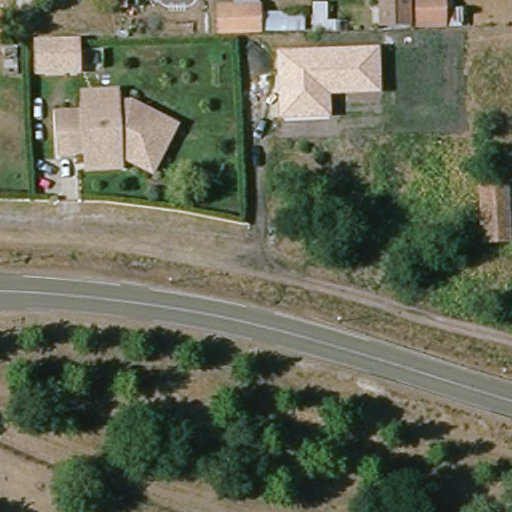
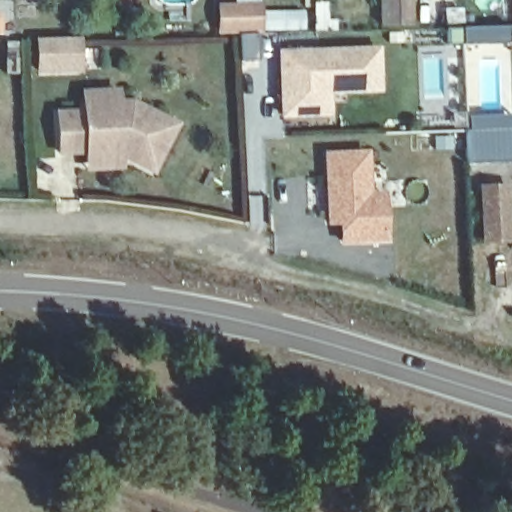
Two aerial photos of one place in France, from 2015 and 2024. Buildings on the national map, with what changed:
unchanged [(140,19),(113,20),(112,0),(140,0),(140,19)]
unchanged [(401,22),(376,22),(376,0),(402,0),(401,22)]
unchanged [(437,19),(410,19),(410,0),(437,0),(437,19)]
unchanged [(225,6),(258,5),(258,29),(226,30),(220,30),(220,6),(225,6)]
new [(461,26),(512,26),(512,43),(461,44),(461,26)]
unchanged [(70,76),(41,76),(40,45),(61,44),(80,44),(80,55),(81,75),(70,76)]
unchanged [(332,96),(331,117),(280,119),(276,51),(380,47),(382,94),(332,96)]
unchanged [(86,170),(85,153),(59,154),(56,114),(82,112),(81,93),(115,91),(115,103),(130,103),(174,125),(151,172),(119,156),(120,168),(86,170)]
new [(451,113),(465,113),(465,114),(512,114),(512,161),(467,163),(465,127),(451,128),(451,113)]
new [(369,149),(371,192),(385,192),(388,242),(341,244),(340,225),(327,226),(324,152),(369,149)]
unchanged [(480,246),(474,184),(508,182),(512,231),(512,244),(480,246)]

